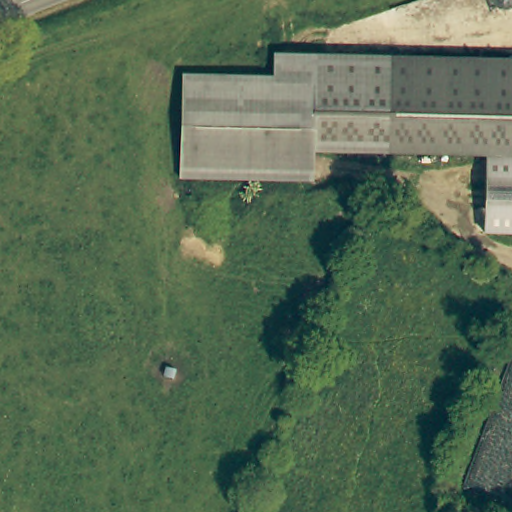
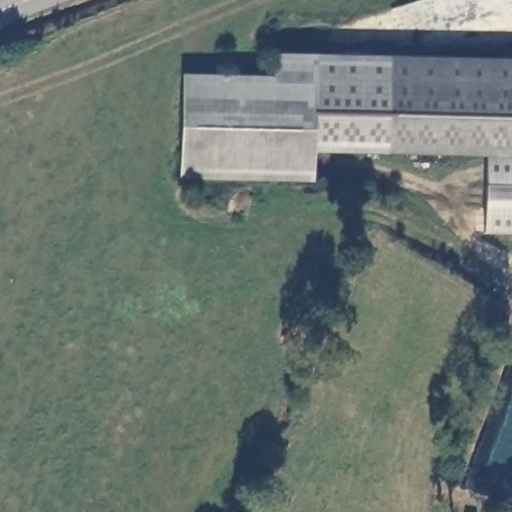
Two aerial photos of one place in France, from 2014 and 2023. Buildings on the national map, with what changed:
unchanged [(308,150),(307,180),(176,177),(178,75),(268,76),(269,53),(310,54),(308,150)]
unchanged [(310,54),(512,58),(512,154),(308,150),(310,54)]
unchanged [(512,154),(512,234),(485,233),(486,153),(512,154)]

